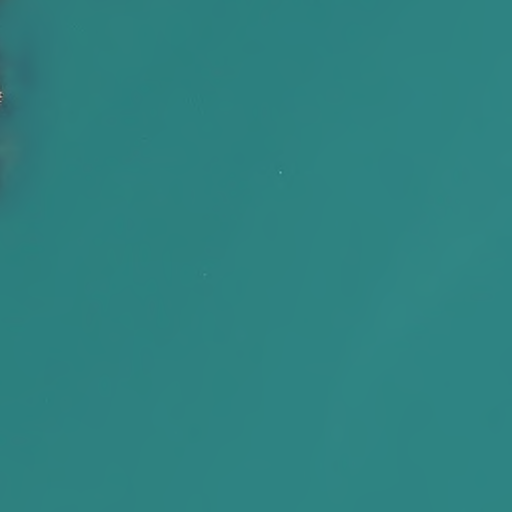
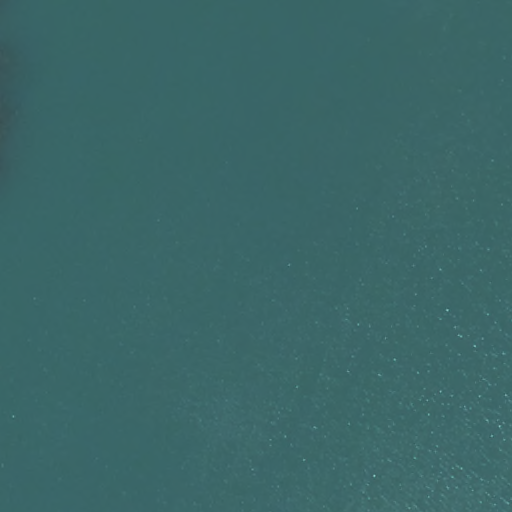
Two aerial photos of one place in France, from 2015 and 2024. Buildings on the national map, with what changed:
[]

